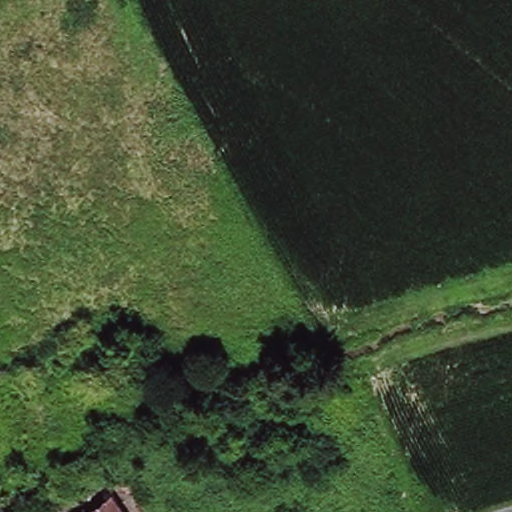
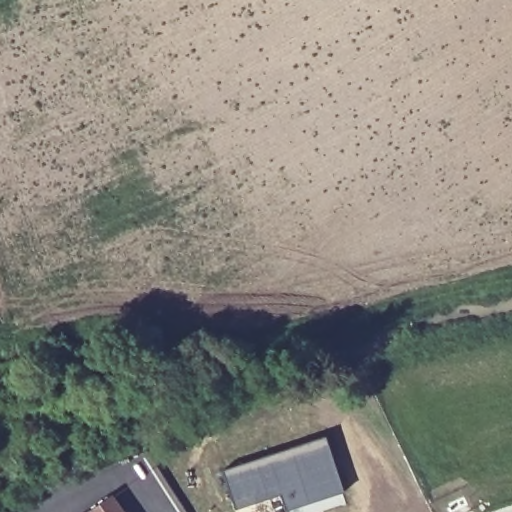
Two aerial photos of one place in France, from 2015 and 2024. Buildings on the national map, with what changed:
new [(320,512),(287,512),(286,510),(280,494),(235,508),(222,470),(325,436),(343,492),(347,503),(320,512)]
unchanged [(112,497),(122,512),(89,512),(112,497)]

